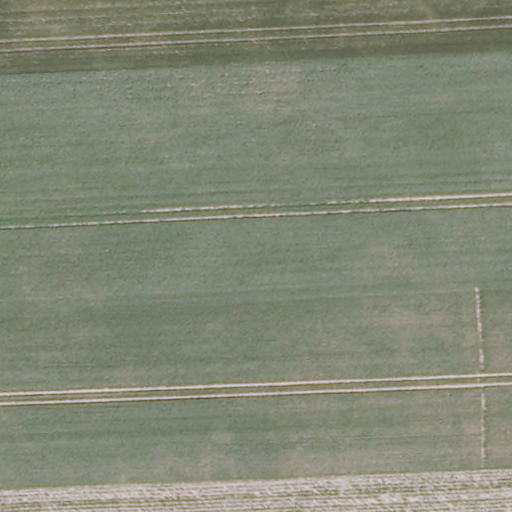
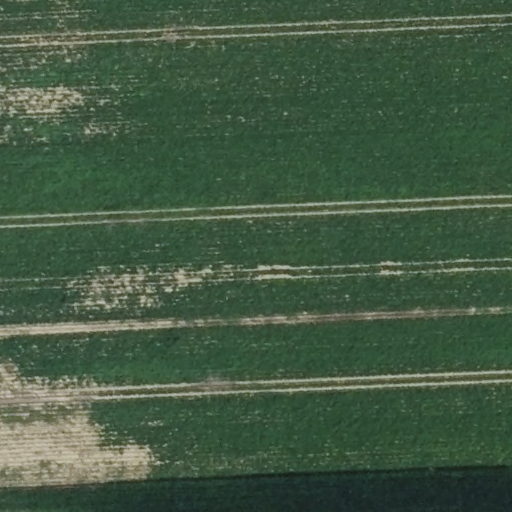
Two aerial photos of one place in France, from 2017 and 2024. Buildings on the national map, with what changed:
[]

